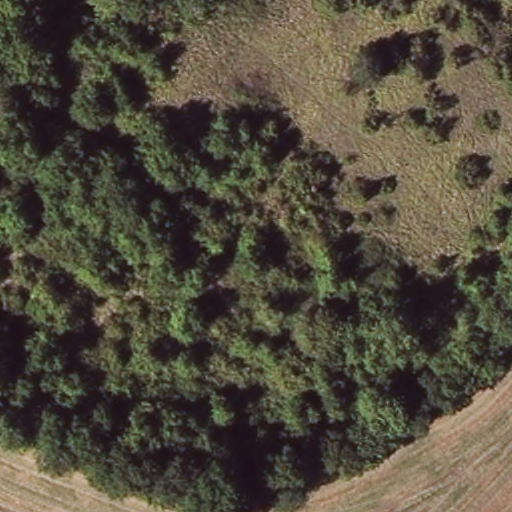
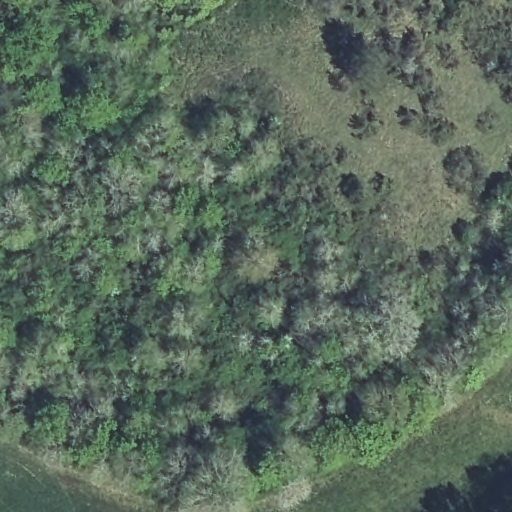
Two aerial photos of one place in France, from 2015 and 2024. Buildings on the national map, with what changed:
[]

